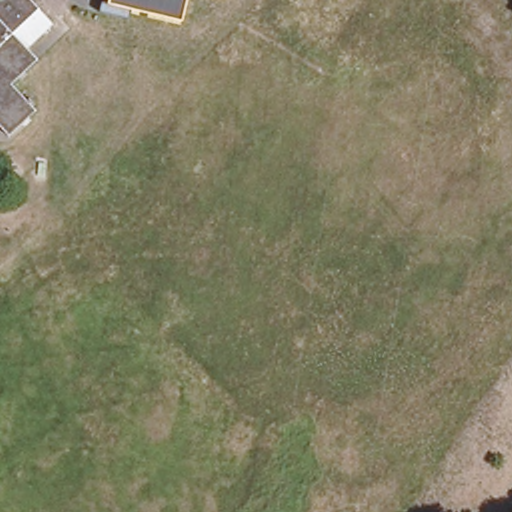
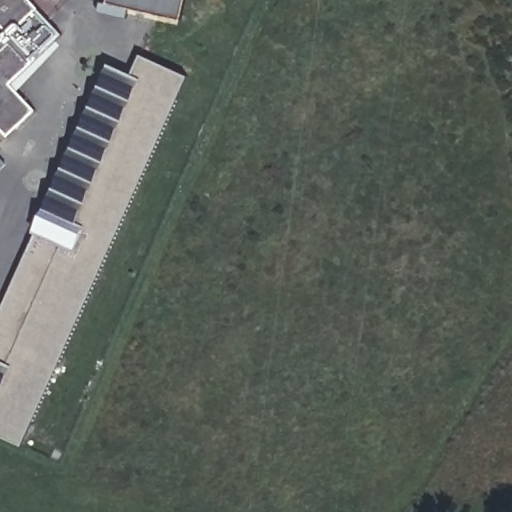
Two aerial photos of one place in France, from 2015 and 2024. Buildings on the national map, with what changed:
unchanged [(25,48),(36,60),(10,85),(35,112),(8,137),(0,129),(0,0),(30,0),(52,24),(25,48)]
unchanged [(109,5),(110,0),(187,0),(183,21),(109,5)]
new [(0,437),(0,307),(109,63),(132,73),(141,54),(189,76),(23,447),(0,437)]

